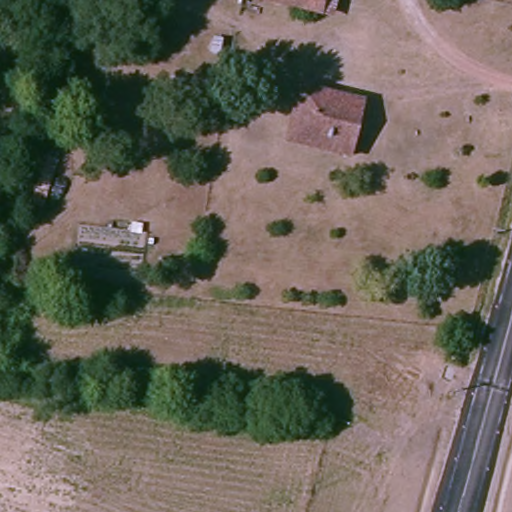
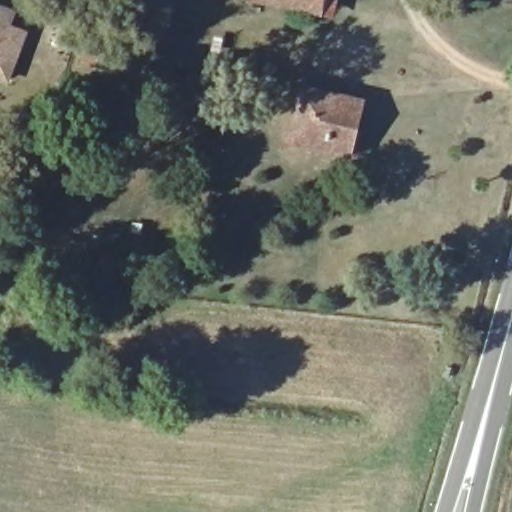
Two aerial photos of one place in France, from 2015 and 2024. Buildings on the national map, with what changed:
unchanged [(248,0),(331,0),(325,22),(248,0)]
new [(16,10),(11,26),(29,32),(9,84),(0,80),(0,4),(16,10)]
unchanged [(110,59),(90,54),(94,36),(114,38),(110,59)]
unchanged [(299,83),(365,102),(351,151),(285,134),(299,83)]

